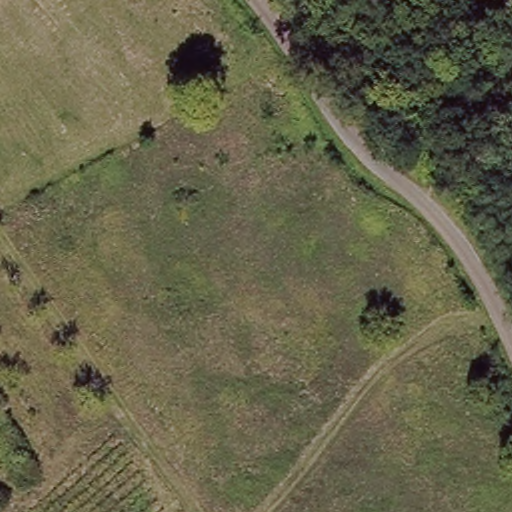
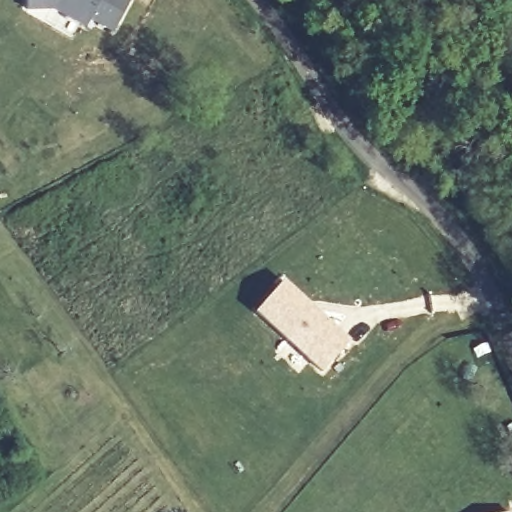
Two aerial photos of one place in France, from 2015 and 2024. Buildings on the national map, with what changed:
new [(90,21),(85,28),(54,12),(26,12),(26,0),(130,0),(112,34),(90,21)]
new [(282,280),(350,342),(321,374),(253,312),(282,280)]

